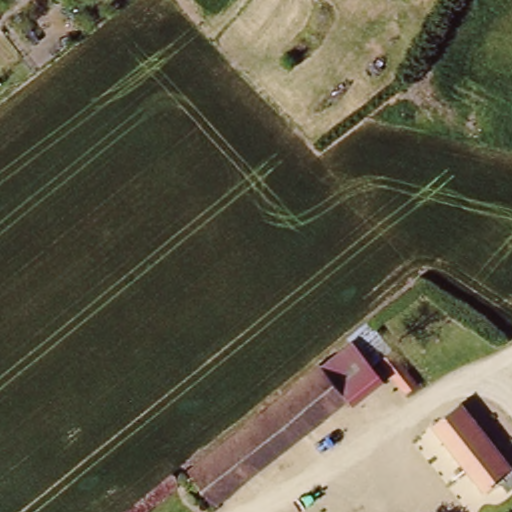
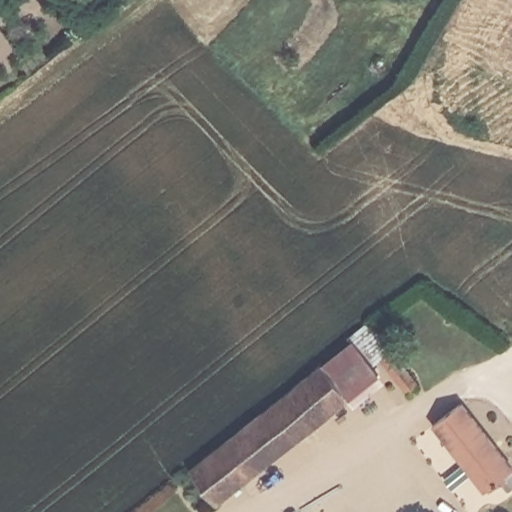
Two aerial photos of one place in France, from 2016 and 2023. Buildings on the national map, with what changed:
unchanged [(410,395),(370,343),(360,350),(352,338),(370,317),(422,385),(410,395)]
unchanged [(360,350),(378,376),(352,396),(324,361),(352,338),(360,350)]
unchanged [(324,361),(352,396),(219,499),(214,495),(199,507),(184,483),(197,473),(195,467),(324,361)]
unchanged [(475,485),(429,426),(457,404),(473,392),(475,395),(491,415),(484,420),(506,447),(497,452),(512,471),(512,486),(502,492),(499,500),(474,496),(475,485)]

